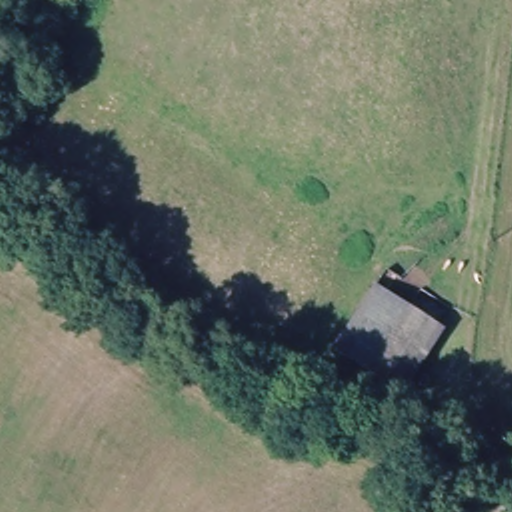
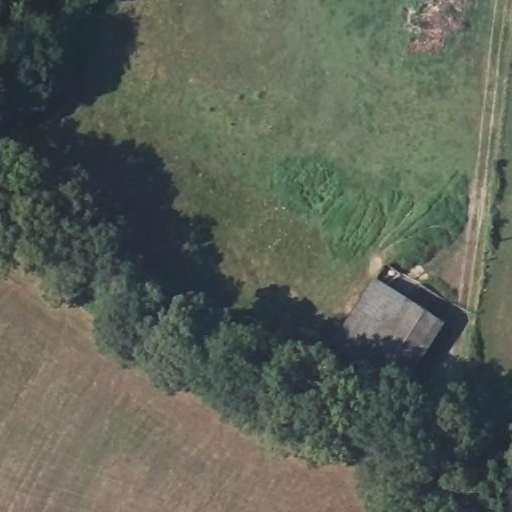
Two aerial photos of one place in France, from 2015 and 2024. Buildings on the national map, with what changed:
unchanged [(383,282),(446,328),(402,391),(340,347),(383,282)]

